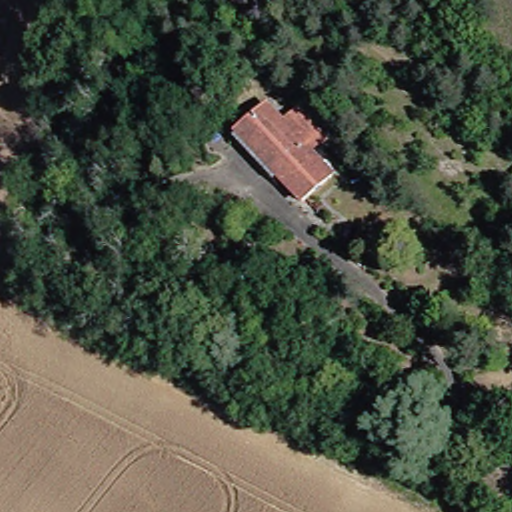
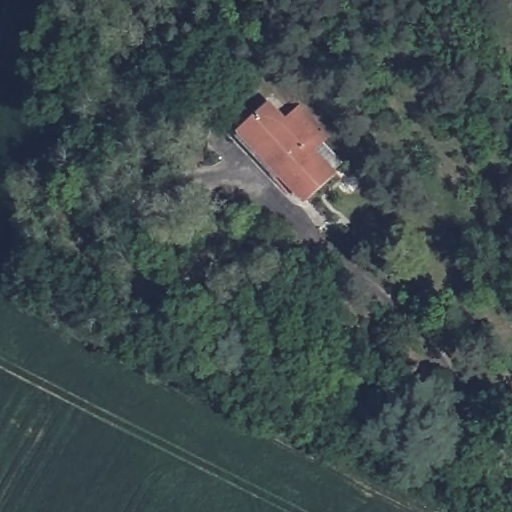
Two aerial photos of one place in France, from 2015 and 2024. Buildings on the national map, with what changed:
unchanged [(271,101),(291,116),(299,106),(331,135),(319,147),(342,169),(308,202),(281,177),(276,181),(238,137),(271,101)]

